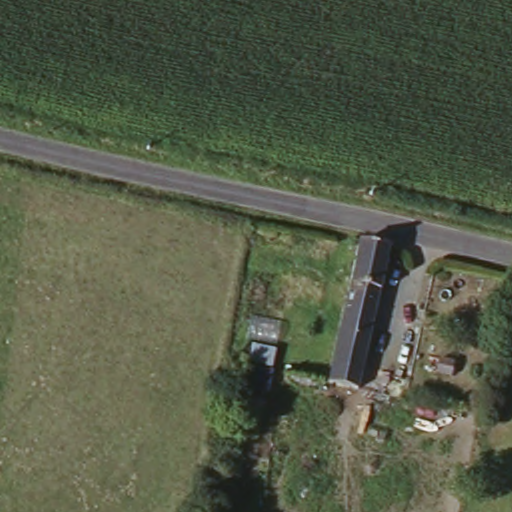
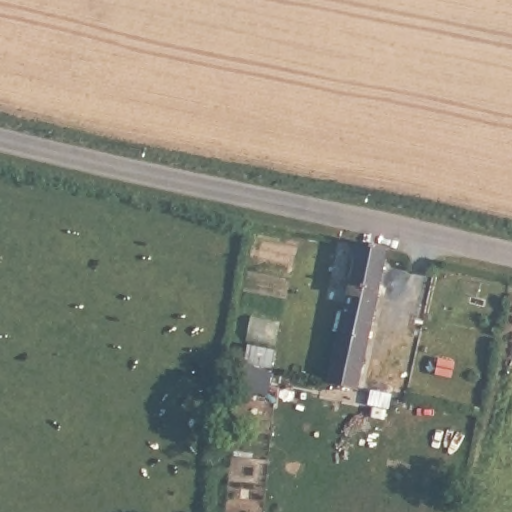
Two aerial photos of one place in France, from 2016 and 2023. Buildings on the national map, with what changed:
unchanged [(358,238),(384,245),(364,345),(349,403),(323,398),(325,381),(358,238)]

